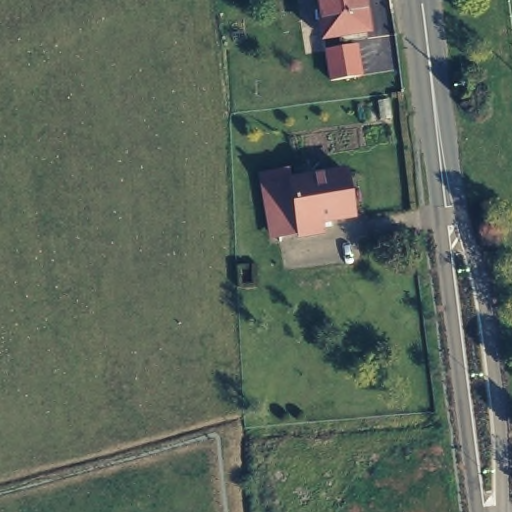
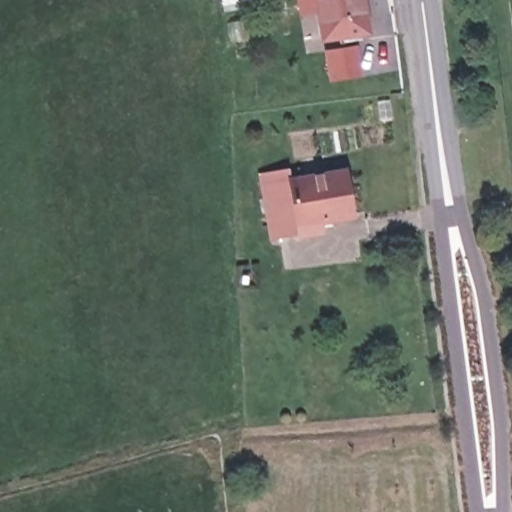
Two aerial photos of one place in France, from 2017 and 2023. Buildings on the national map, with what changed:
unchanged [(367,31),(325,36),(320,0),(363,0),(367,31)]
unchanged [(257,172),(279,170),(280,179),(331,171),(339,215),(286,224),(287,236),(267,240),(257,172)]

